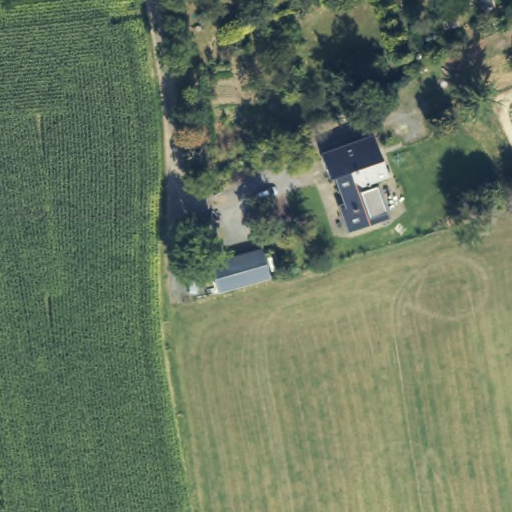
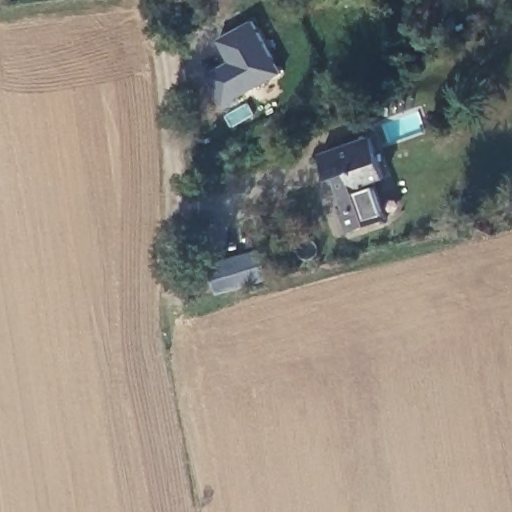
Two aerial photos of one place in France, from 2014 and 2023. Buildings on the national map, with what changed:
new [(230,61),(218,40),(253,20),(284,73),(240,98),(242,101),(226,110),(206,74),(230,61)]
unchanged [(345,232),(338,212),(344,210),(331,178),(326,180),(316,154),(367,136),(381,178),(370,182),(384,220),(345,232)]
unchanged [(269,277),(243,286),(220,293),(211,264),(258,247),(269,277)]

